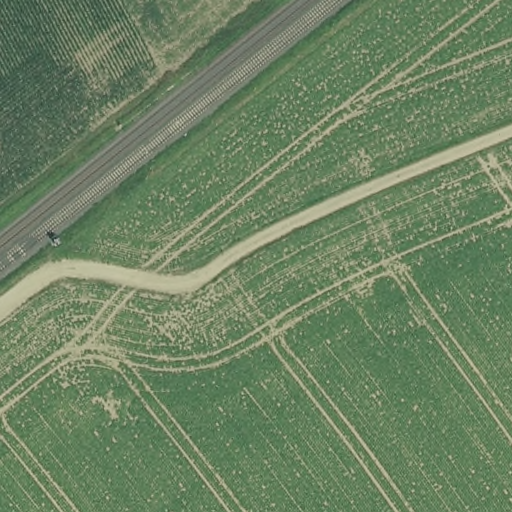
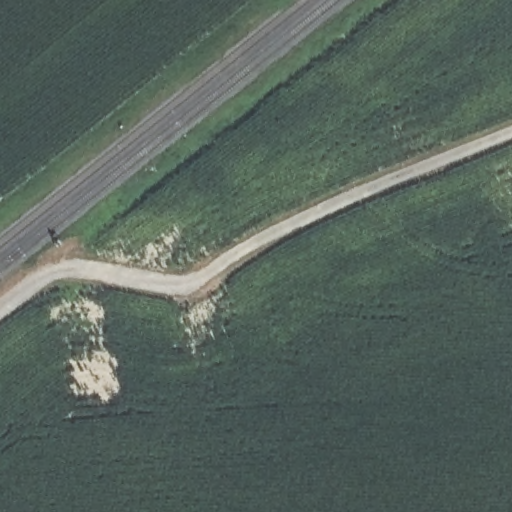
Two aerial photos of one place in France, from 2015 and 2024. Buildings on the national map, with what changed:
[]

